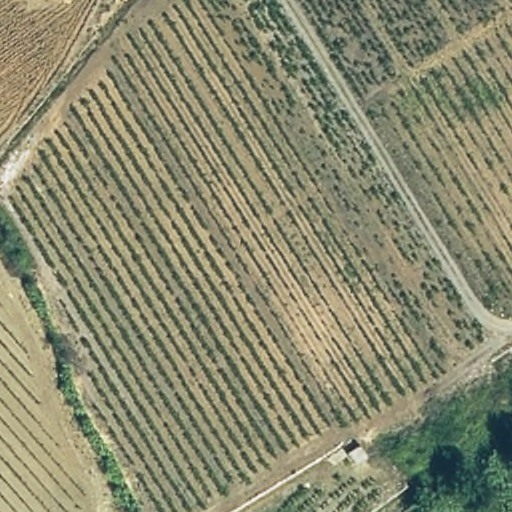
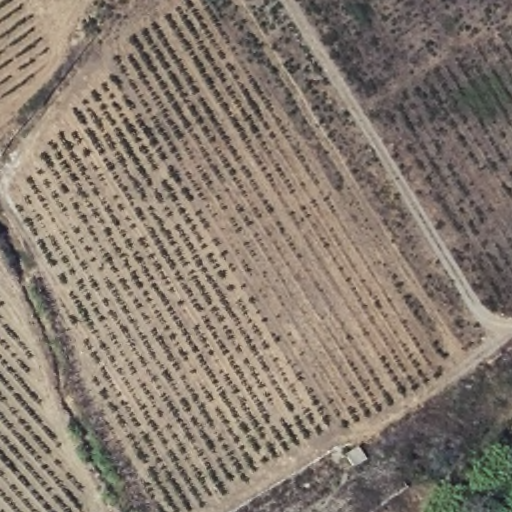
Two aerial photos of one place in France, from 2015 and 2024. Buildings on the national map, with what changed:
unchanged [(362,438),(366,450),(350,456),(347,446),(362,438)]

